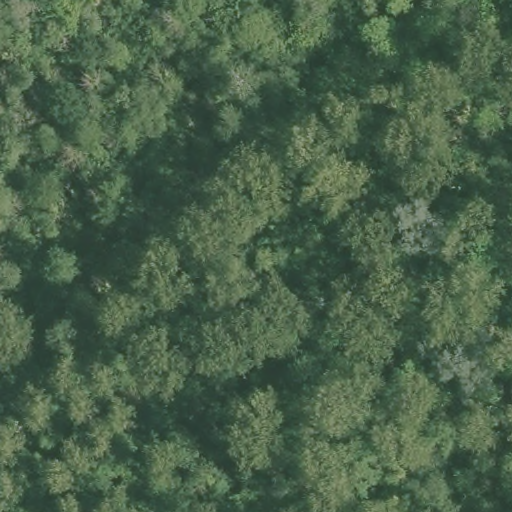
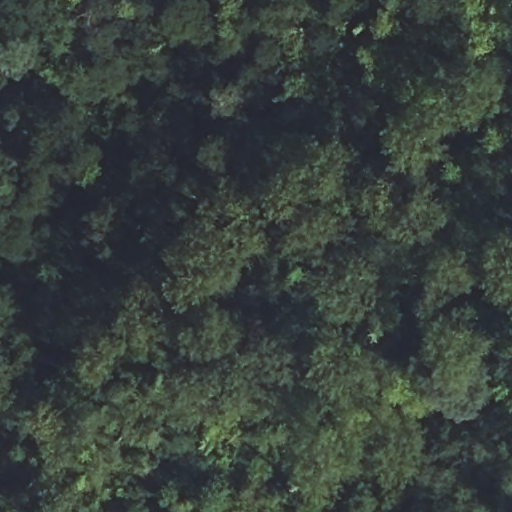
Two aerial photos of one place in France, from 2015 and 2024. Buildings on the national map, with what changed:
[]

